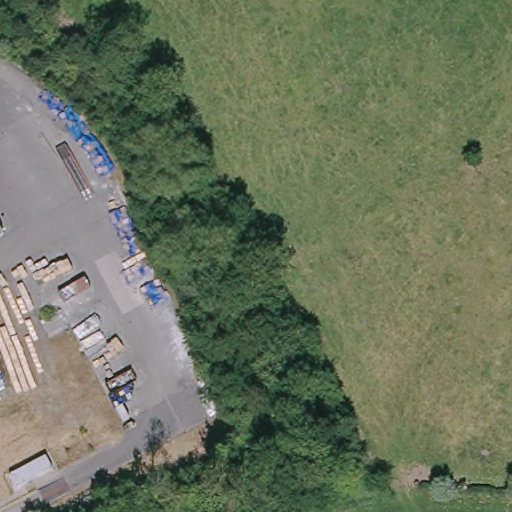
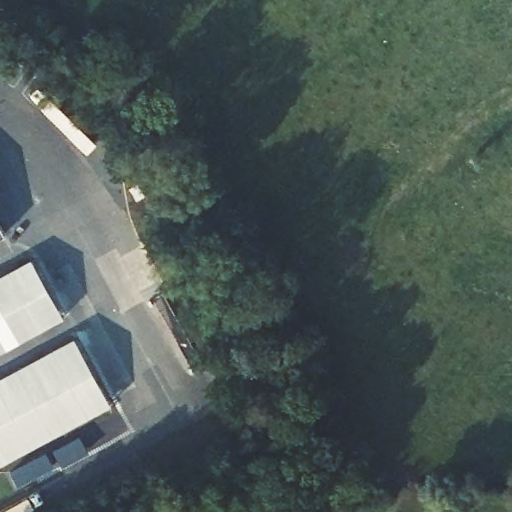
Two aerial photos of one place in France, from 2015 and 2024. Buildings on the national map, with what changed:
unchanged [(0,232),(0,221),(5,230),(0,232)]
new [(0,275),(30,259),(62,318),(0,351),(0,275)]
new [(104,412),(0,469),(0,386),(68,350),(104,412)]

